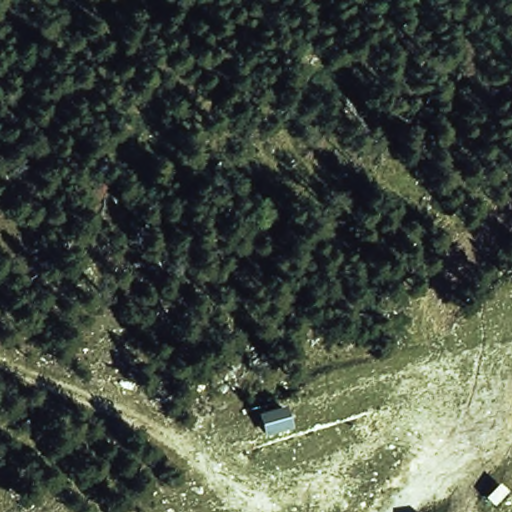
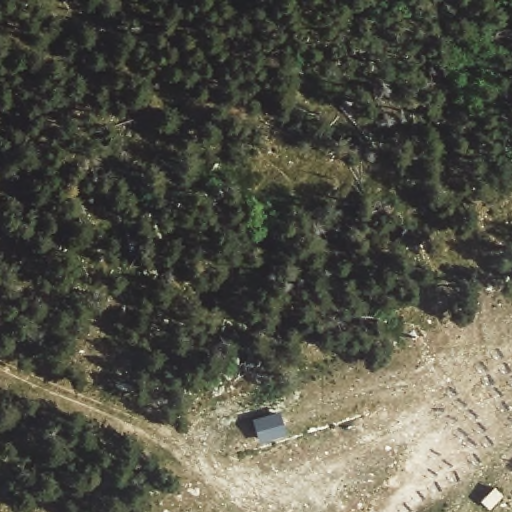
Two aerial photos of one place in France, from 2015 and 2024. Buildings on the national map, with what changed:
unchanged [(255,416),(281,408),(286,431),(259,438),(255,416)]

